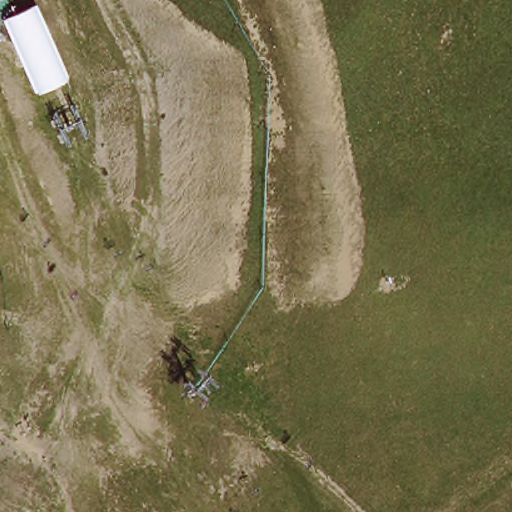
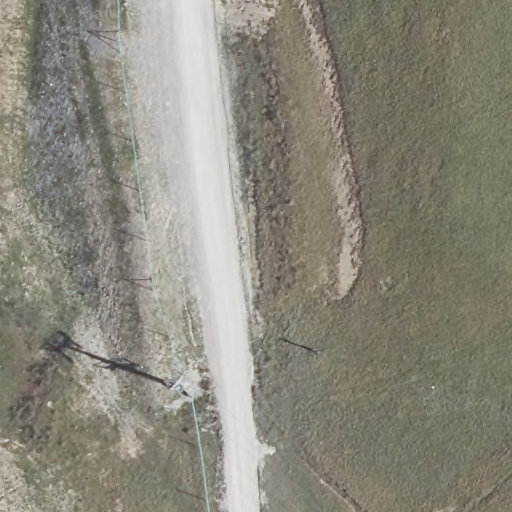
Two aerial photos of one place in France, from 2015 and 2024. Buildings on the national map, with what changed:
demolished [(36,0),(38,0),(76,81),(38,97),(2,18),(36,0)]

